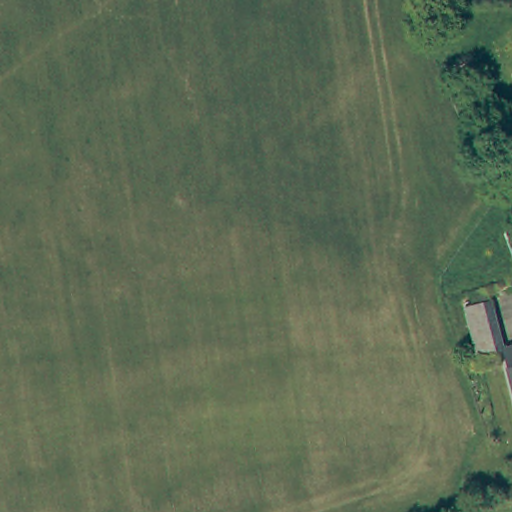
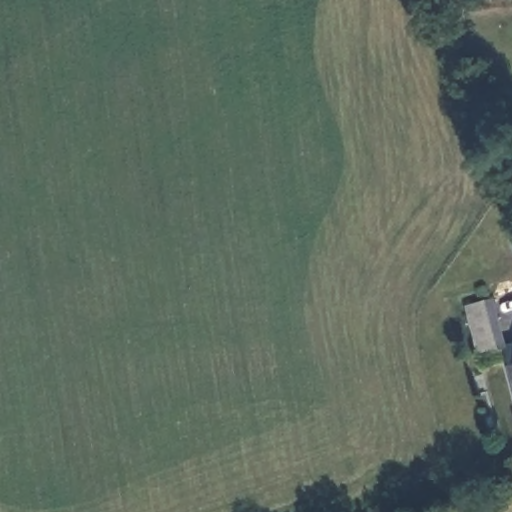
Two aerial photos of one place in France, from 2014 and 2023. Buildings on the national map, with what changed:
unchanged [(503,232),(512,228),(512,253),(503,232)]
unchanged [(504,351),(476,357),(462,304),(489,298),(504,351)]
unchanged [(509,370),(512,369),(512,383),(509,370)]

